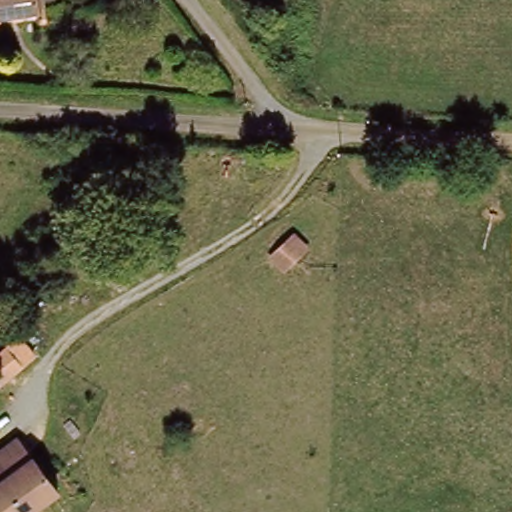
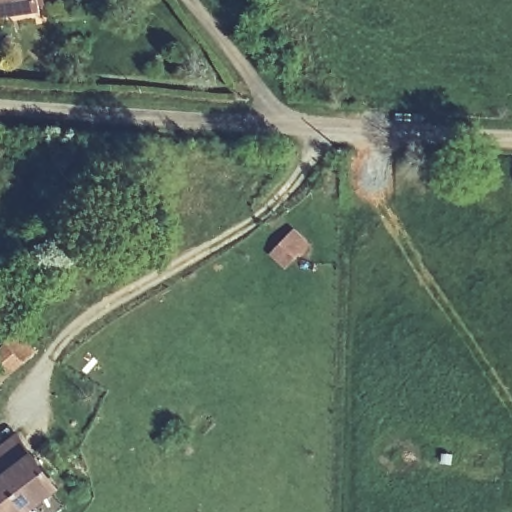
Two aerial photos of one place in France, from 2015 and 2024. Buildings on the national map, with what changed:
unchanged [(31,0),(33,15),(0,21),(0,0),(31,0)]
unchanged [(295,227),(310,241),(284,265),(270,252),(295,227)]
unchanged [(27,366),(3,387),(0,382),(0,349),(7,343),(27,366)]
unchanged [(25,437),(38,458),(0,482),(0,452),(25,437)]
unchanged [(38,458),(62,495),(36,512),(0,512),(0,482),(38,458)]

